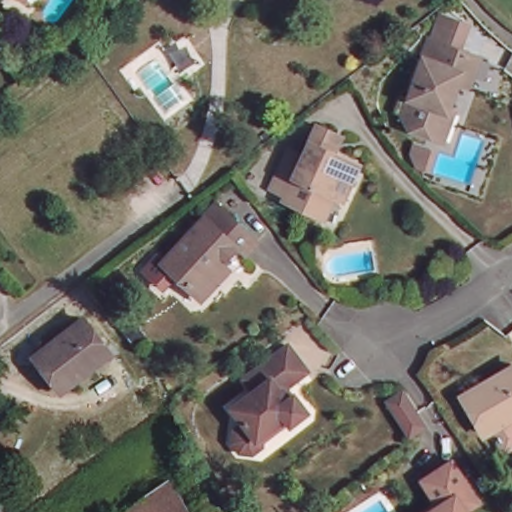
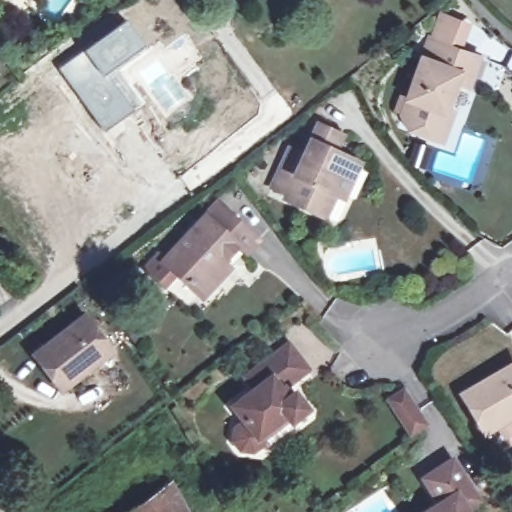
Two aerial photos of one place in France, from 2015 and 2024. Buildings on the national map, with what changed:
unchanged [(454,108),(444,134),(414,124),(417,116),(403,111),(432,38),(433,35),(442,12),(474,23),(463,47),(479,53),(472,70),(468,81),(457,77),(447,105),(454,108)]
new [(125,20),(145,45),(115,67),(142,102),(103,130),(58,69),(125,20)]
unchanged [(343,204),(334,200),(324,222),(284,204),(286,200),(271,192),(289,155),(304,162),(318,130),(337,140),(346,143),(338,160),(359,170),(343,204)]
unchanged [(219,284),(207,297),(181,273),(168,287),(150,271),(164,256),(168,260),(218,207),(222,204),(238,218),(263,241),(249,255),(243,249),(228,263),(234,268),(219,284)]
unchanged [(86,370),(67,385),(41,351),(90,312),(114,344),(84,367),(86,370)]
unchanged [(308,409),(291,423),(286,416),(264,433),(263,445),(259,449),(254,452),(240,451),(234,443),(236,431),(246,423),(234,407),(255,390),(246,378),(290,345),(309,370),(289,385),(308,409)]
unchanged [(504,418),(484,430),(464,395),(512,367),(512,418),(506,421),(504,418)]
unchanged [(381,402),(399,391),(421,425),(404,436),(381,402)]
unchanged [(512,427),(512,454),(504,460),(487,435),(510,423),(512,427)]
unchanged [(458,461),(484,500),(472,508),(474,512),(436,512),(446,505),(429,480),(458,461)]
unchanged [(187,512),(139,512),(130,500),(159,478),(171,495),(176,491),(187,512)]

